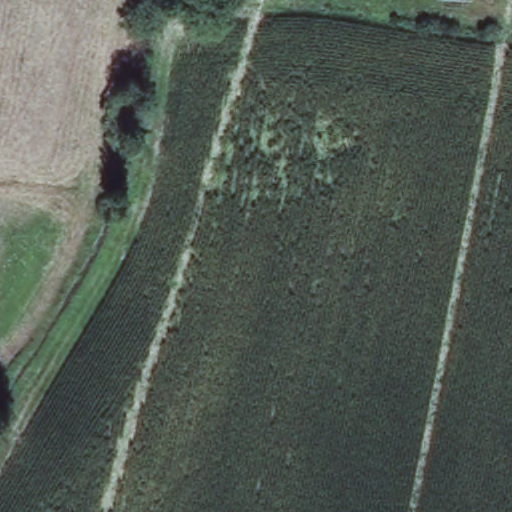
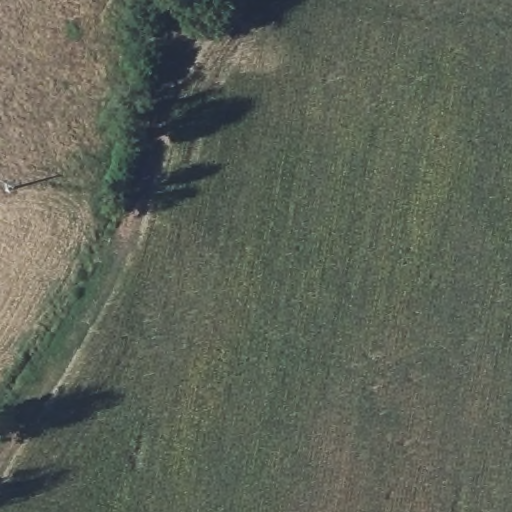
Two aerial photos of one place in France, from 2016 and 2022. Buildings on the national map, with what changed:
[]

